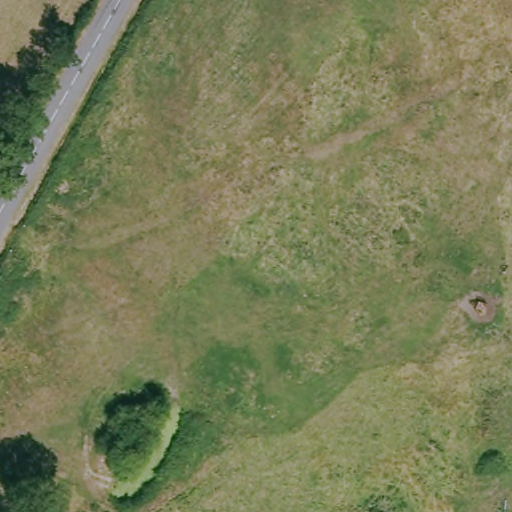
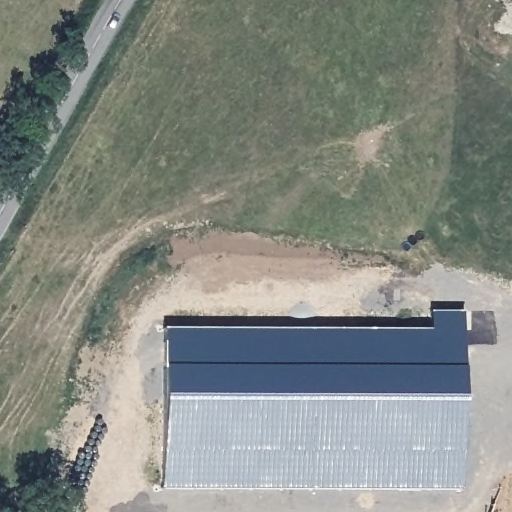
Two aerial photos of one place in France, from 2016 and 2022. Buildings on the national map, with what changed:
new [(162,331),(460,331),(462,490),(162,491),(162,331)]

